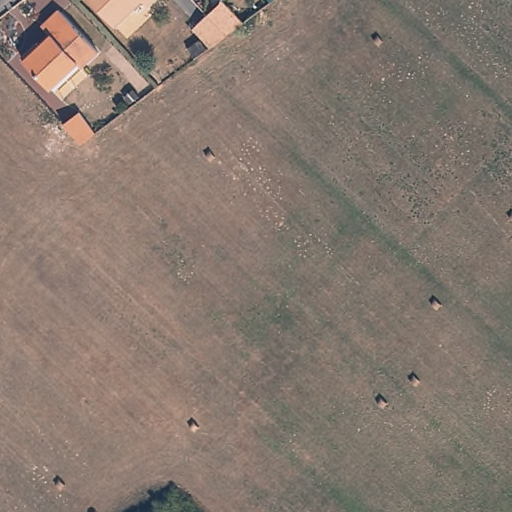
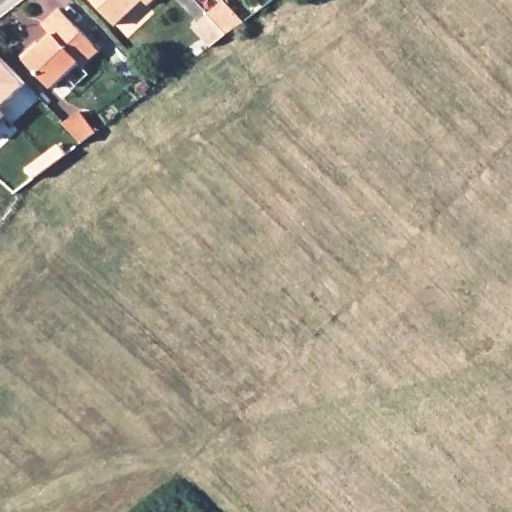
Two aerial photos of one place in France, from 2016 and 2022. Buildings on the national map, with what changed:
unchanged [(143,2),(115,26),(91,0),(155,0),(147,7),(143,2)]
unchanged [(194,29),(208,16),(223,1),(243,24),(226,36),(210,48),(194,29)]
unchanged [(64,10),(102,50),(87,67),(82,63),(55,88),(26,56),(42,42),(46,46),(57,35),(47,25),(64,10)]
new [(0,110),(0,56),(26,85),(0,110)]
new [(0,123),(0,112),(5,117),(0,123)]

